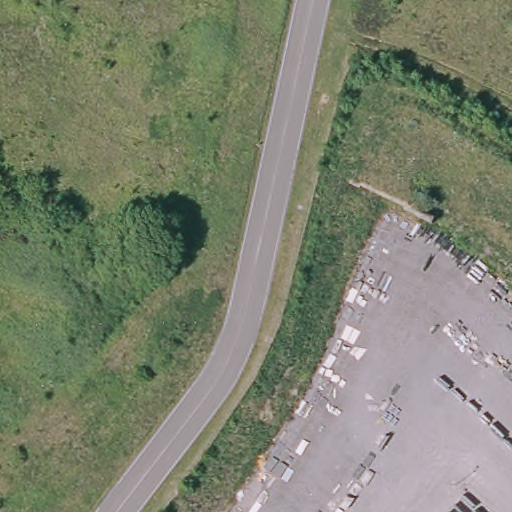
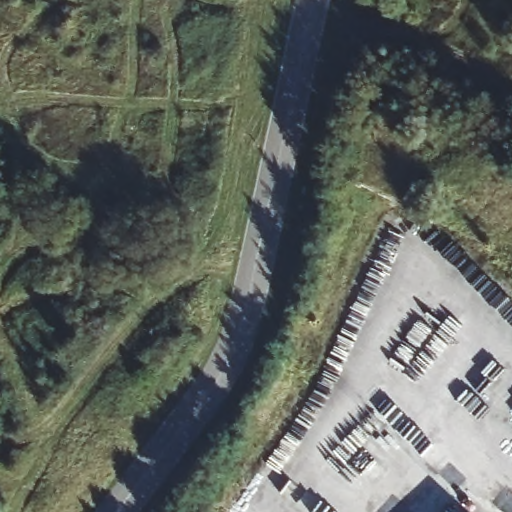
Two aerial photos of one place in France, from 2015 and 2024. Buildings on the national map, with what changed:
unchanged [(338,172),(361,127),(442,161),(431,215),(338,172)]

